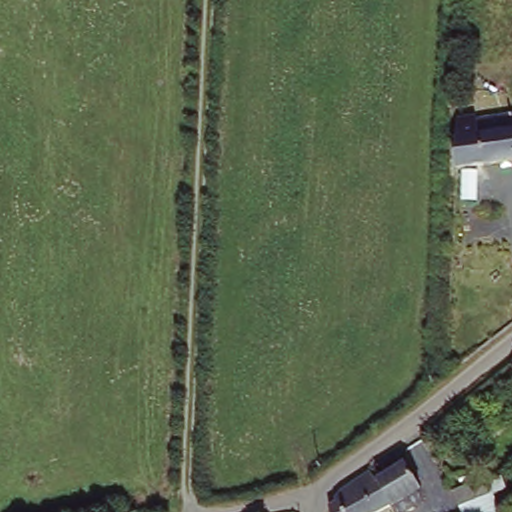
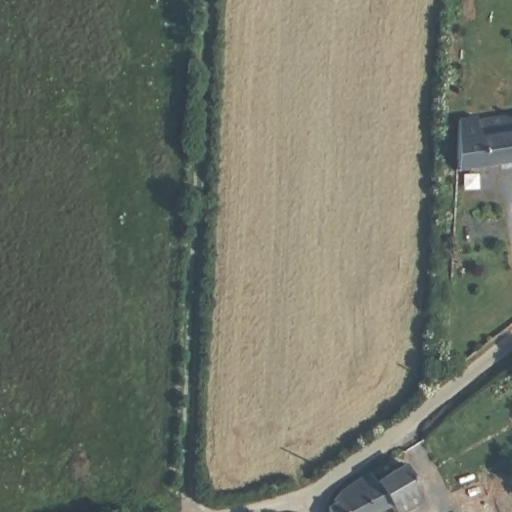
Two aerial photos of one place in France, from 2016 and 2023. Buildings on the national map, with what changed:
unchanged [(512,116),(512,157),(452,170),(455,122),(475,120),(478,123),(512,116)]
unchanged [(457,510),(448,490),(498,469),(506,486),(496,492),(503,512),(452,512),(457,510)]
unchanged [(330,509),(345,497),(345,491),(368,470),(375,482),(403,470),(416,497),(390,511),(387,512),(330,512),(330,509)]

